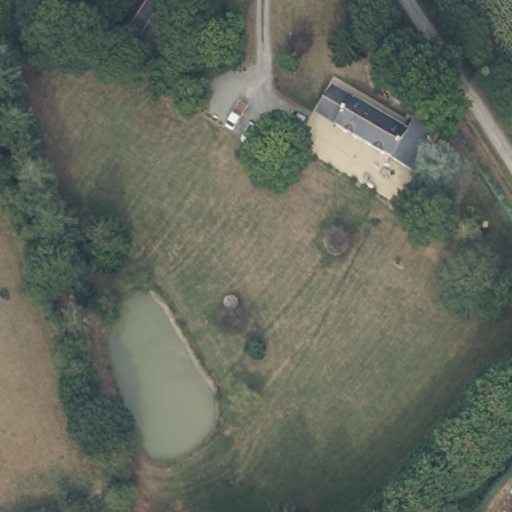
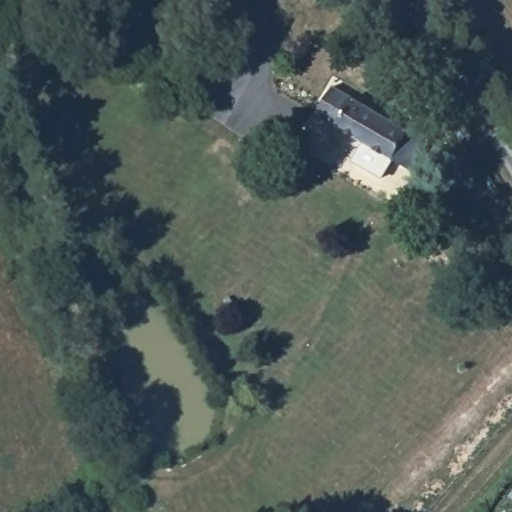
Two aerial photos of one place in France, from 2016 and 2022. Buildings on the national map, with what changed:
unchanged [(153,0),(147,10),(133,32),(115,22),(129,0),(153,0)]
unchanged [(318,82),(346,99),(413,139),(418,133),(438,145),(419,179),(301,111),(318,82)]

